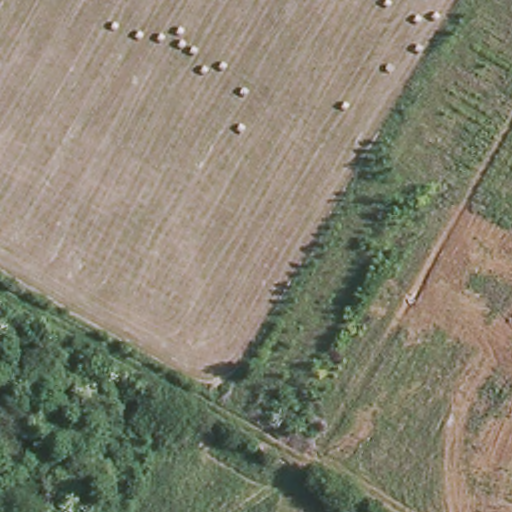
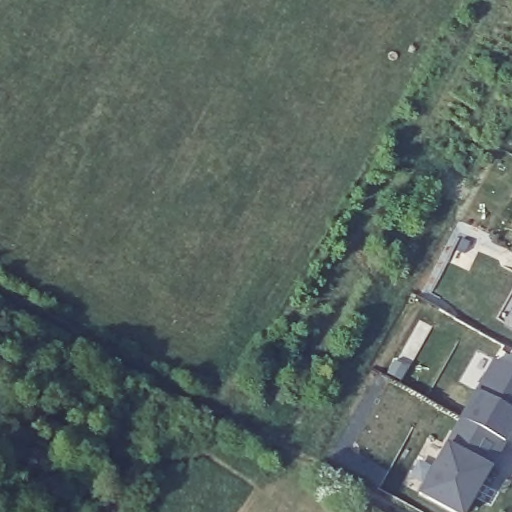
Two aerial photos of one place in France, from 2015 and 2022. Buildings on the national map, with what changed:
new [(512,369),(512,424),(502,441),(460,417),(493,359),(512,369)]
new [(460,417),(502,441),(501,443),(499,441),(470,494),(472,495),(462,512),(453,512),(418,492),(460,417)]

